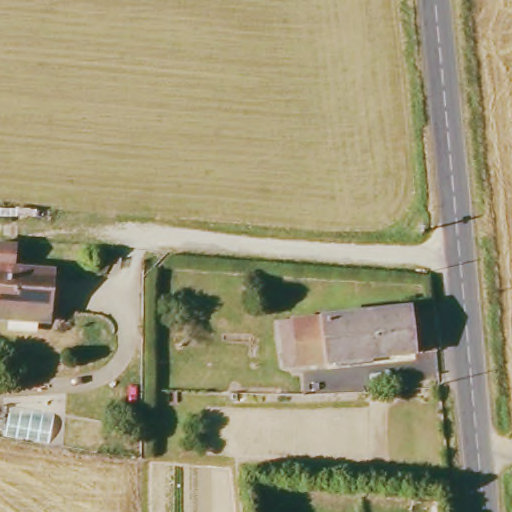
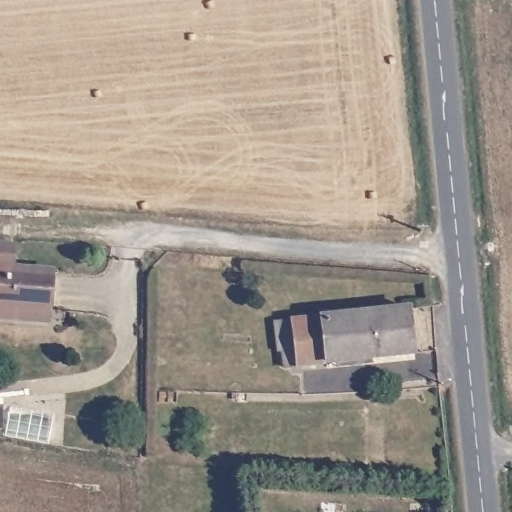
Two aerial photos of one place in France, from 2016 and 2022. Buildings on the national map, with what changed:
unchanged [(49,323),(0,320),(0,244),(14,246),(14,268),(51,270),(49,323)]
unchanged [(413,353),(282,370),(278,323),(405,307),(413,353)]

